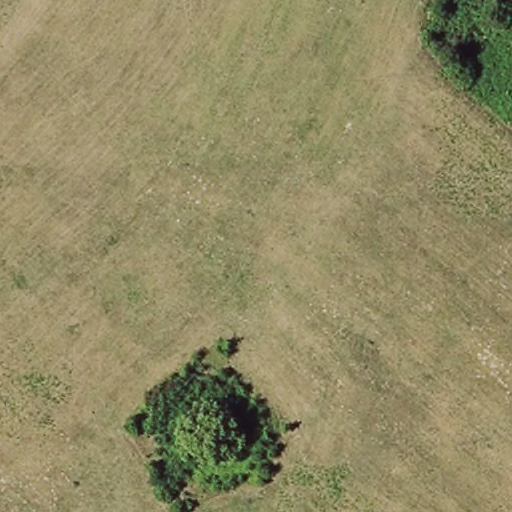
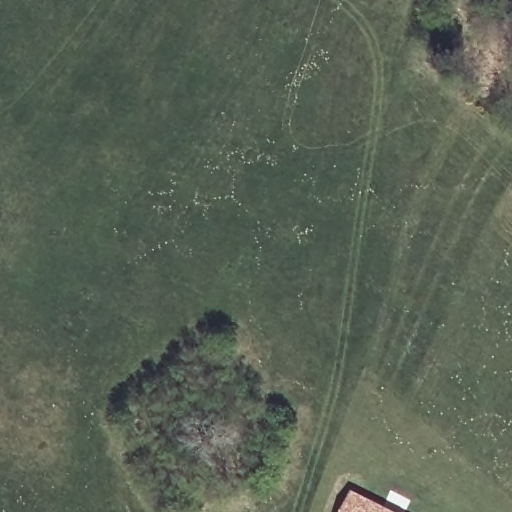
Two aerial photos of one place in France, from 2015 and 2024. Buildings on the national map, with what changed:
new [(353,490),(397,512),(342,512),(353,490)]

